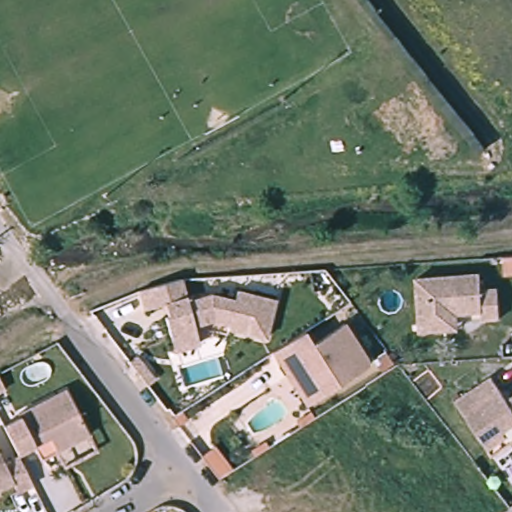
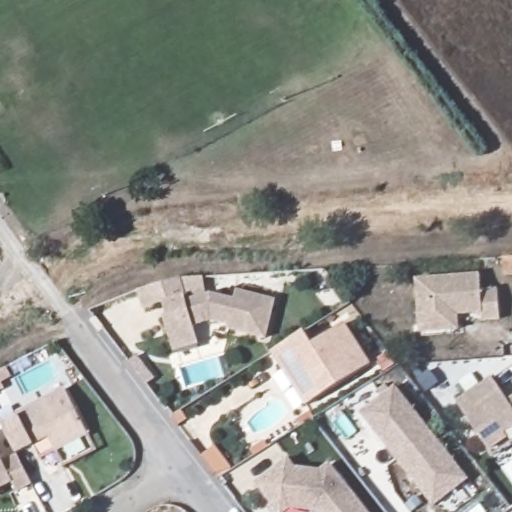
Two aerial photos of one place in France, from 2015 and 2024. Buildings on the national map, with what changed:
unchanged [(501,256),(512,255),(512,272),(502,273),(501,256)]
unchanged [(414,331),(414,323),(410,278),(472,272),(474,289),(490,287),(493,317),(476,319),(475,310),(451,312),(452,327),(414,331)]
unchanged [(175,355),(170,341),(163,323),(166,322),(162,309),(142,317),(135,298),(176,283),(184,305),(207,296),(231,300),(232,291),(271,298),(264,337),(225,330),(226,326),(209,323),(193,329),(195,332),(194,333),(200,346),(175,355)]
unchanged [(281,370),(270,354),(301,333),(310,345),(341,323),(368,362),(316,399),(306,406),(281,370)]
unchanged [(485,375),(500,398),(512,389),(512,417),(497,428),(500,433),(481,446),(449,398),(485,375)]
new [(396,388),(432,434),(398,461),(362,415),(396,388)]
unchanged [(12,416),(10,413),(57,389),(80,434),(48,451),(40,436),(9,452),(1,437),(0,434),(0,422),(12,416)]
new [(420,489),(398,461),(432,434),(470,481),(439,505),(435,507),(420,489)]
unchanged [(10,455),(20,473),(25,484),(11,491),(5,481),(0,484),(0,461),(10,455)]
new [(316,512),(307,501),(272,504),(258,485),(288,461),(295,469),(321,470),(330,463),(366,512),(316,512)]

